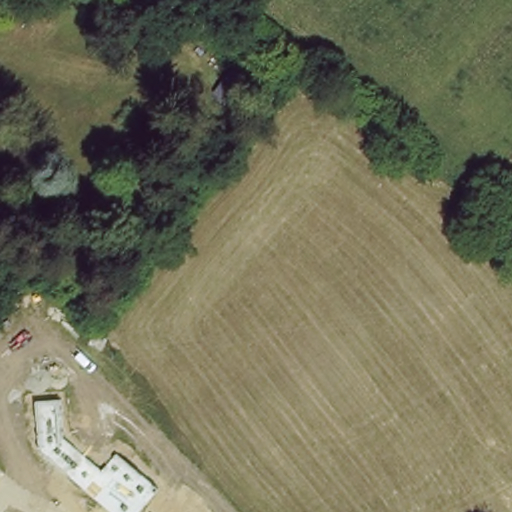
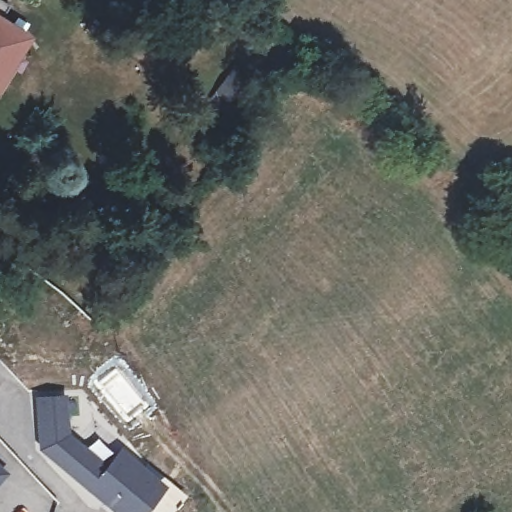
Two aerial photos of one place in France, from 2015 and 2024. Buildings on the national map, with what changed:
new [(7,6),(0,17),(0,2),(7,6)]
new [(0,80),(0,18),(28,37),(0,80)]
new [(69,437),(109,470),(123,453),(165,487),(145,512),(118,512),(44,451),(41,402),(67,400),(69,437)]
new [(8,477),(0,486),(0,471),(8,477)]

